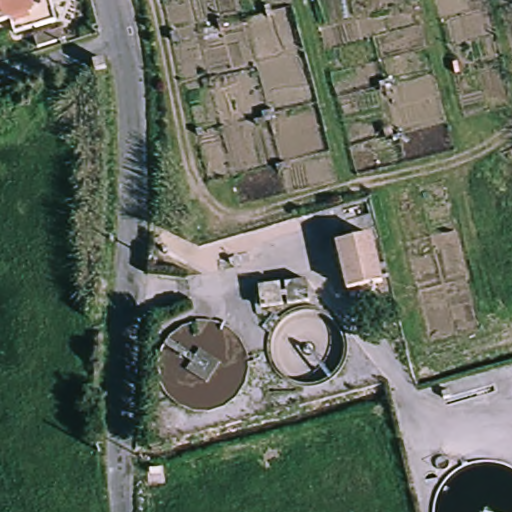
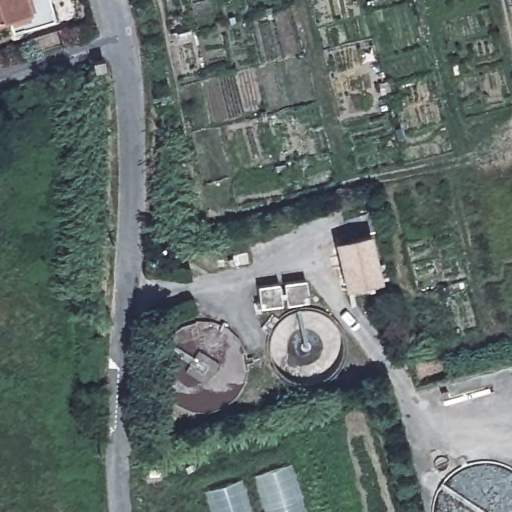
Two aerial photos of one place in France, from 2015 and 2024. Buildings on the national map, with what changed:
unchanged [(21,0),(25,11),(6,17),(0,19),(0,0),(21,0)]
unchanged [(10,31),(6,17),(25,11),(21,0),(47,0),(52,19),(10,31)]
unchanged [(43,47),(40,34),(55,30),(58,41),(43,47)]
unchanged [(336,242),(370,235),(380,282),(347,290),(336,242)]
unchanged [(302,295),(285,300),(281,281),(300,276),(302,295)]
unchanged [(278,301),(259,306),(253,287),(274,283),(278,301)]
new [(290,462),(306,512),(263,512),(251,475),(290,462)]
new [(202,490),(240,478),(251,512),(209,512),(202,490)]

